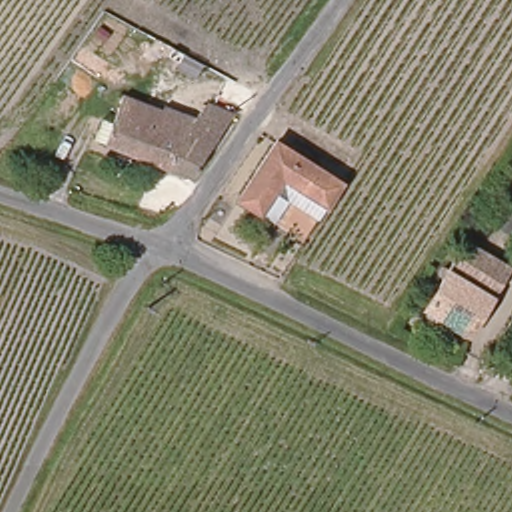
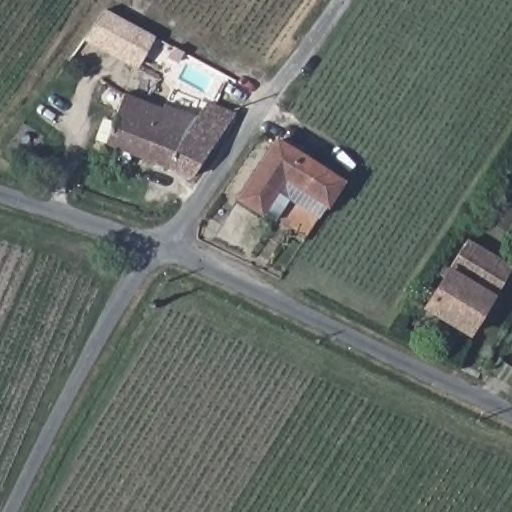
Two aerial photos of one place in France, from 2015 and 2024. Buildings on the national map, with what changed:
new [(85,43),(104,10),(156,39),(138,71),(85,43)]
unchanged [(231,114),(189,178),(166,171),(141,160),(90,140),(95,127),(108,132),(123,95),(161,110),(165,105),(196,120),(205,106),(231,114)]
unchanged [(241,194),(277,136),(341,177),(326,200),(286,174),(264,208),(241,194)]
unchanged [(125,214),(134,191),(146,196),(137,217),(125,214)]
unchanged [(501,207),(512,213),(512,235),(492,225),(501,207)]
unchanged [(442,278),(437,275),(443,266),(450,270),(467,240),(512,267),(470,336),(423,308),(442,278)]

